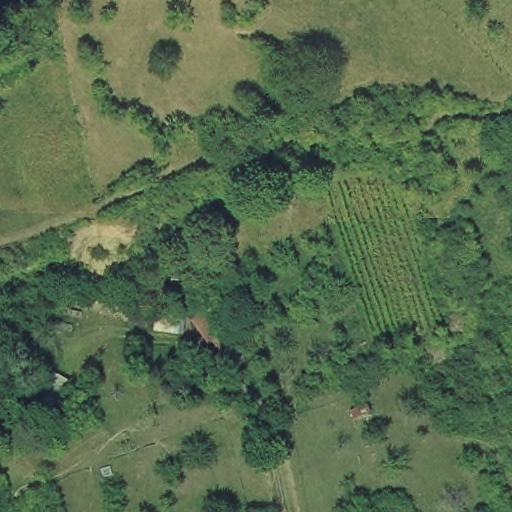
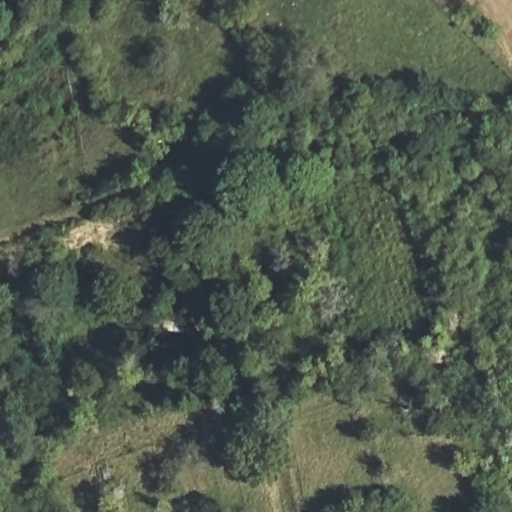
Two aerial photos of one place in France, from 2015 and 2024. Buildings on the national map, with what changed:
unchanged [(72,384),(56,411),(40,399),(56,371),(72,384)]

